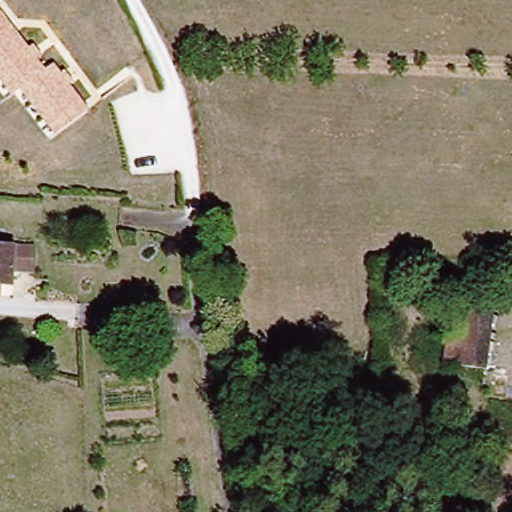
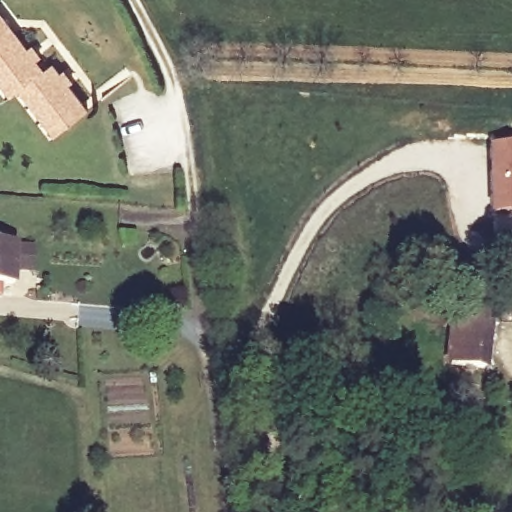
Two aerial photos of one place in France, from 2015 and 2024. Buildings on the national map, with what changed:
unchanged [(34,45),(45,58),(41,62),(47,70),(55,64),(62,74),(66,70),(75,82),(71,86),(87,109),(55,135),(21,91),(13,96),(0,79),(0,12),(29,49),(34,45)]
new [(512,145),(512,216),(491,216),(489,145),(512,145)]
unchanged [(0,241),(20,242),(38,242),(37,267),(19,267),(18,278),(0,278),(0,241)]
unchanged [(457,374),(458,353),(460,286),(489,287),(486,355),(485,375),(457,374)]

